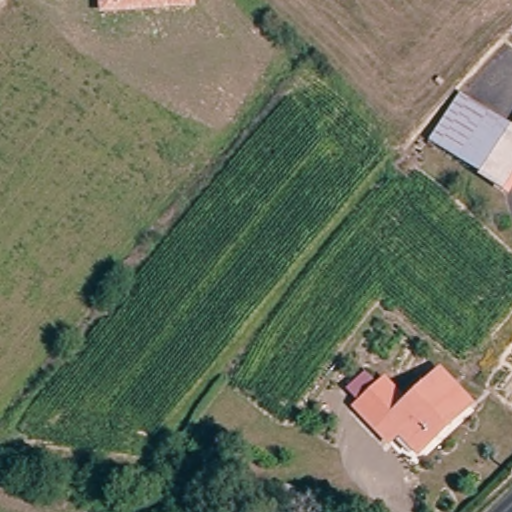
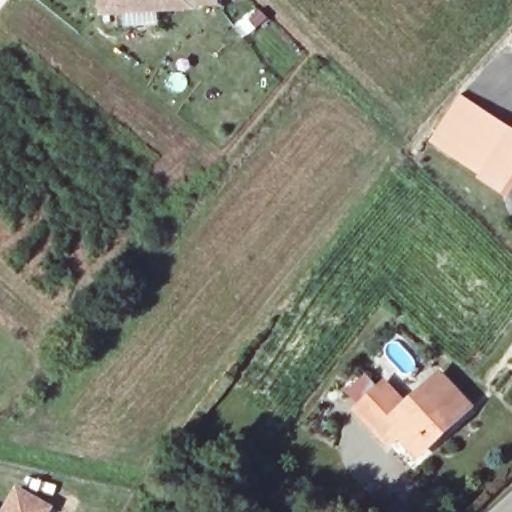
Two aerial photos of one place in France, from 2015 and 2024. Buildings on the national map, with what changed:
unchanged [(97,0),(194,0),(194,10),(97,16),(97,0)]
unchanged [(511,131),(484,173),(463,159),(438,142),(464,102),(465,102),(491,119),(511,131)]
unchanged [(512,191),(484,173),(511,131),(512,132),(512,191)]
unchanged [(379,380),(404,406),(437,374),(467,406),(419,453),(400,434),(389,445),(352,406),(379,380)]
new [(46,504),(42,512),(1,512),(14,487),(46,504)]

